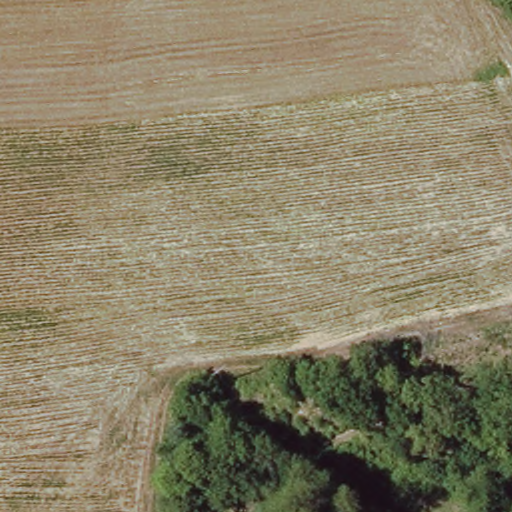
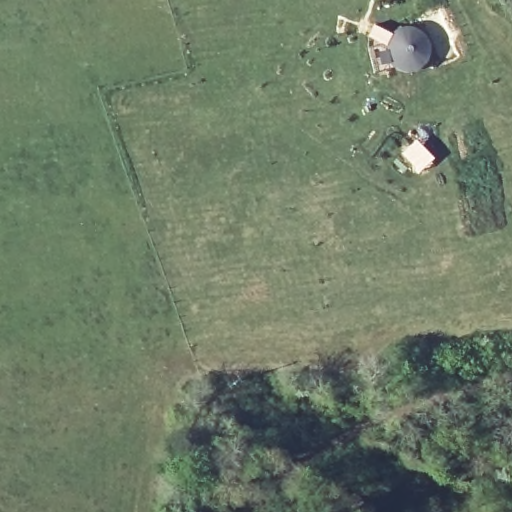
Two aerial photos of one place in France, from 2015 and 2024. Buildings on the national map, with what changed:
new [(389,37),(397,29),(408,26),(420,29),(428,37),(431,48),(428,60),(420,68),(408,71),(397,68),(389,60),(386,48),(389,37)]
new [(416,138),(434,158),(417,173),(400,154),(416,138)]

